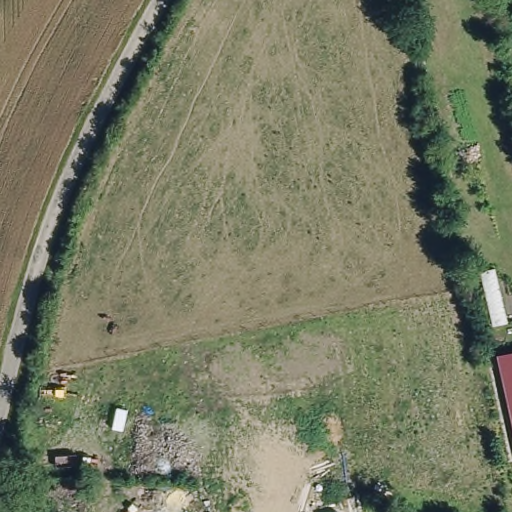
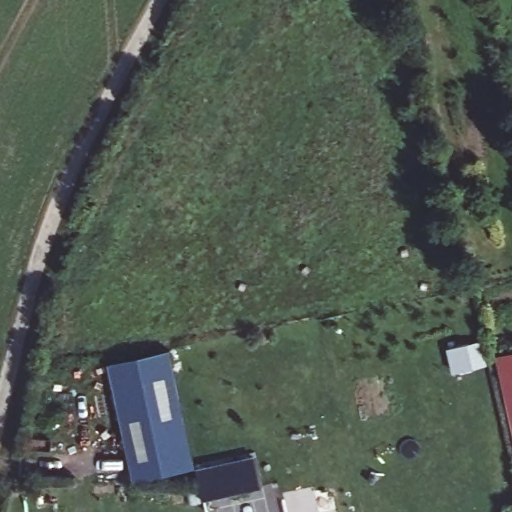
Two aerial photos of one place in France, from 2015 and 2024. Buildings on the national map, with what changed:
new [(133,476),(108,362),(171,349),(197,467),(150,477),(133,476)]
unchanged [(512,353),(512,428),(497,357),(512,353)]

